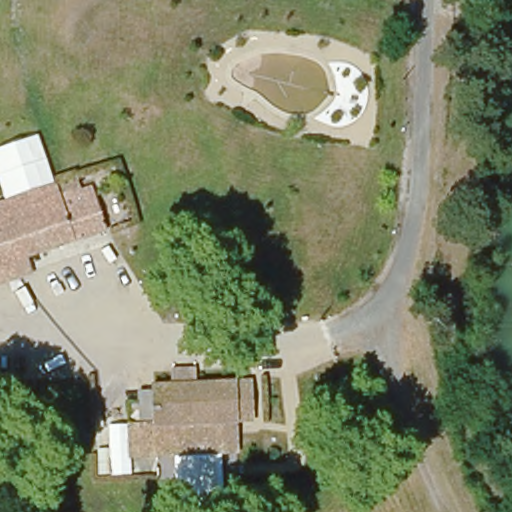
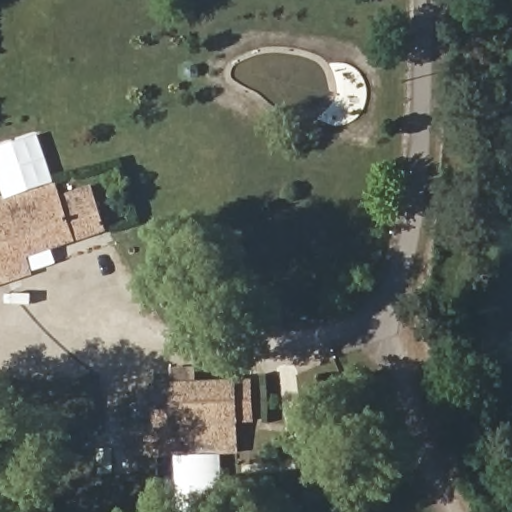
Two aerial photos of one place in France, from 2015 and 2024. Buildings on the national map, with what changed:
unchanged [(0,191),(0,146),(36,133),(60,178),(2,197),(0,191)]
unchanged [(0,278),(0,198),(2,197),(59,179),(80,173),(84,183),(92,181),(107,230),(30,255),(34,267),(10,274),(0,278)]
unchanged [(242,416),(244,447),(222,448),(224,512),(167,512),(165,453),(163,384),(177,382),(177,365),(199,363),(200,374),(255,374),(257,414),(242,416)]
unchanged [(177,382),(163,384),(165,453),(124,456),(121,389),(146,390),(145,381),(166,378),(166,364),(177,365),(177,382)]

